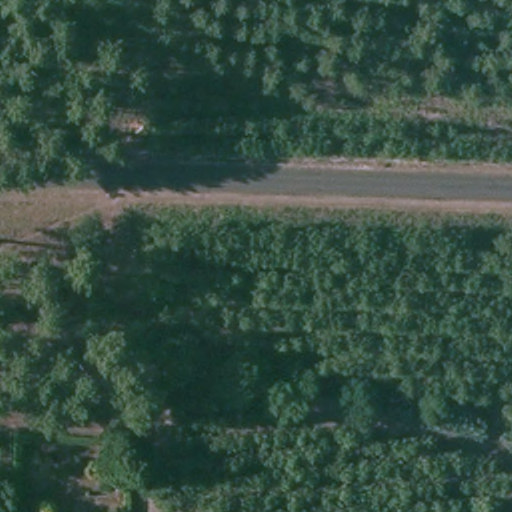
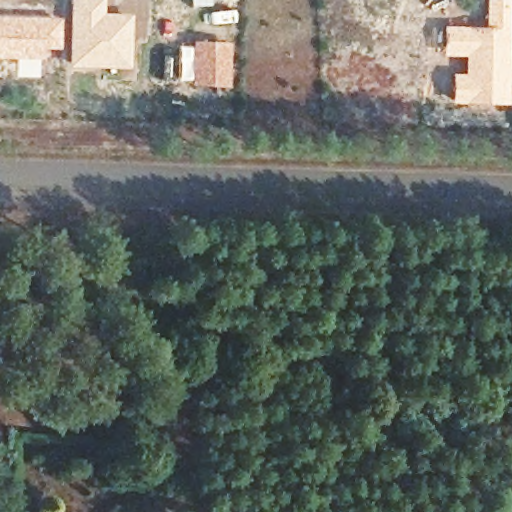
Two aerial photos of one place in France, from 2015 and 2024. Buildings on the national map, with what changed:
new [(103,12),(130,14),(129,67),(68,66),(69,0),(103,0),(103,12)]
new [(508,105),(450,102),(451,73),(462,74),(462,56),(441,55),(441,25),(485,27),(486,0),(511,0),(508,105)]
new [(59,49),(42,48),(41,60),(0,58),(0,16),(60,19),(59,49)]
new [(193,41),(230,42),(229,87),(191,86),(193,41)]

